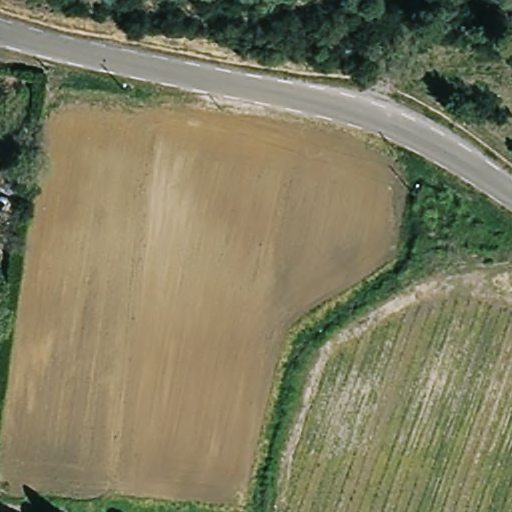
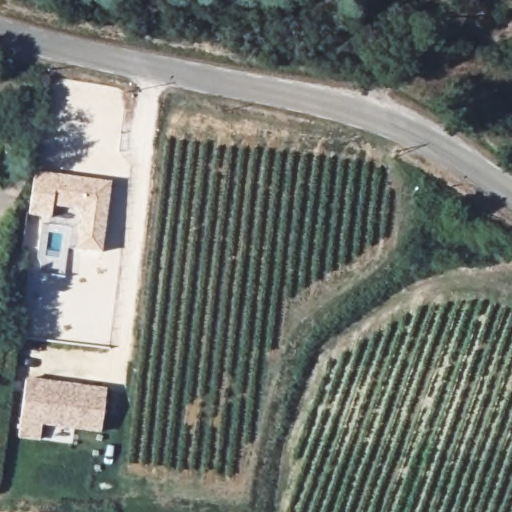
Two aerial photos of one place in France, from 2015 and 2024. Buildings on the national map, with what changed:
new [(113,182),(102,253),(75,250),(80,211),(54,207),(52,219),(29,216),(34,174),(113,182)]
new [(40,441),(19,438),(26,377),(107,388),(102,433),(42,426),(40,441)]

